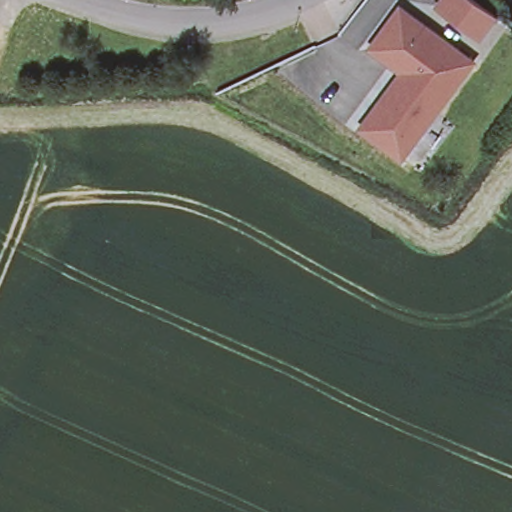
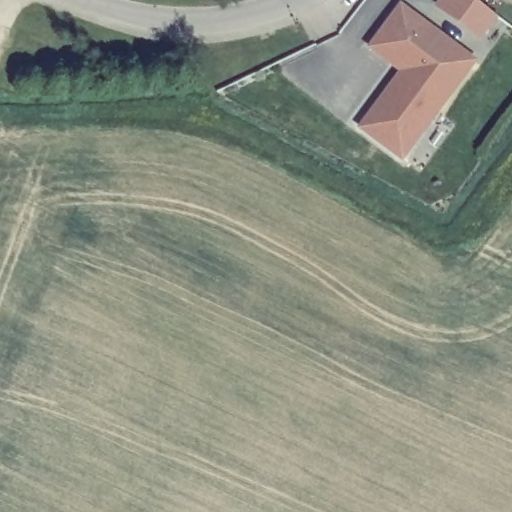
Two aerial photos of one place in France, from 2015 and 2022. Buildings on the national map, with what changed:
unchanged [(481,36),(439,6),(444,0),(477,0),(497,15),(481,36)]
unchanged [(404,153),(362,124),(404,66),(372,42),(402,2),(475,55),(404,153)]

